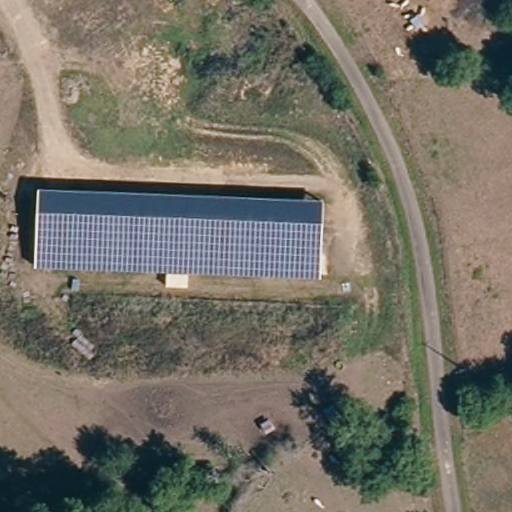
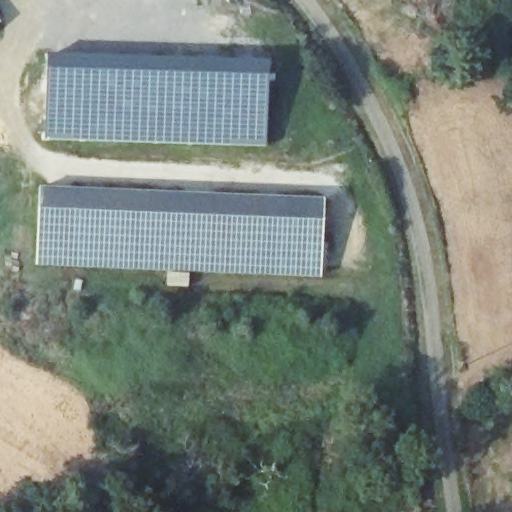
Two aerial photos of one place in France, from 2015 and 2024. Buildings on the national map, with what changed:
unchanged [(0,19),(3,22),(0,25),(0,19)]
new [(47,54),(268,61),(265,145),(44,138),(47,54)]
unchanged [(324,200),(320,275),(36,262),(39,186),(324,200)]

